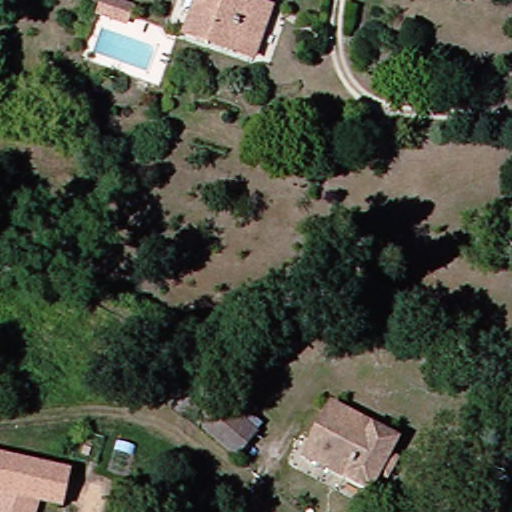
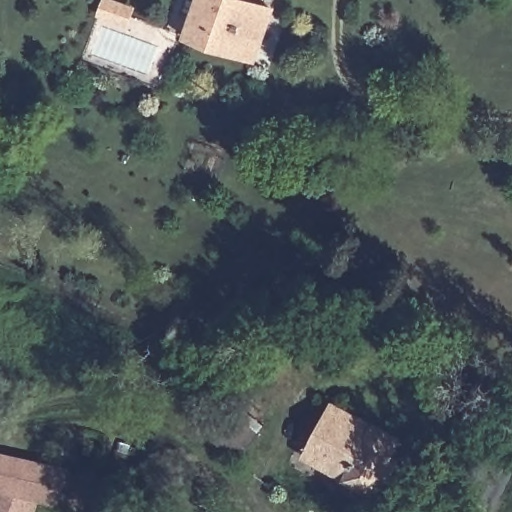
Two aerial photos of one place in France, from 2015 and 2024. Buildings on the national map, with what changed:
unchanged [(184,28),(195,0),(249,0),(266,7),(247,52),(184,28)]
unchanged [(386,478),(377,474),(371,491),(303,459),(327,404),(395,435),(388,451),(396,454),(386,478)]
unchanged [(212,406),(252,424),(237,459),(202,434),(212,406)]
unchanged [(56,500),(34,498),(28,512),(0,512),(0,457),(61,468),(56,500)]

